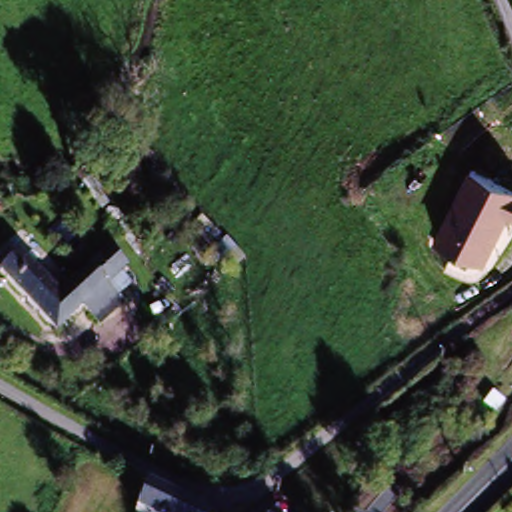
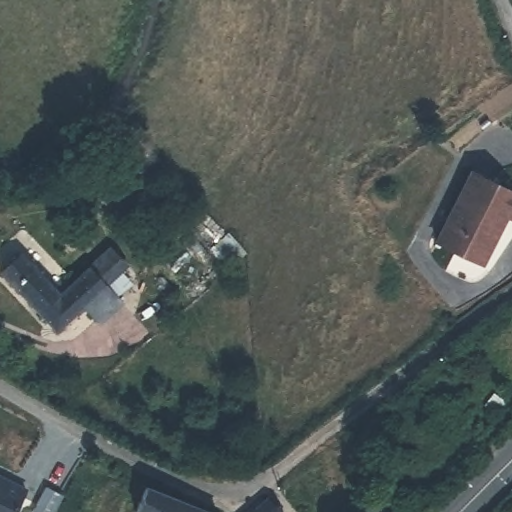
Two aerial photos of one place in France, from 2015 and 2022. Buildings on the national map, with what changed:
unchanged [(477,177),(512,195),(512,221),(509,219),(504,229),(506,231),(486,268),(440,245),(477,177)]
unchanged [(48,339),(0,285),(0,281),(17,265),(20,269),(28,262),(48,284),(41,291),(52,302),(82,274),(100,259),(116,276),(98,293),(115,312),(93,332),(76,313),(48,339)]
new [(11,512),(0,512),(0,474),(24,485),(11,512)]
unchanged [(141,483),(211,512),(128,512),(141,483)]
new [(267,500),(278,512),(254,512),(267,500)]

